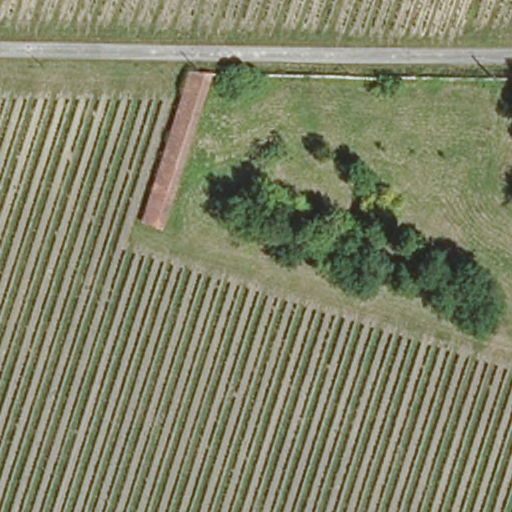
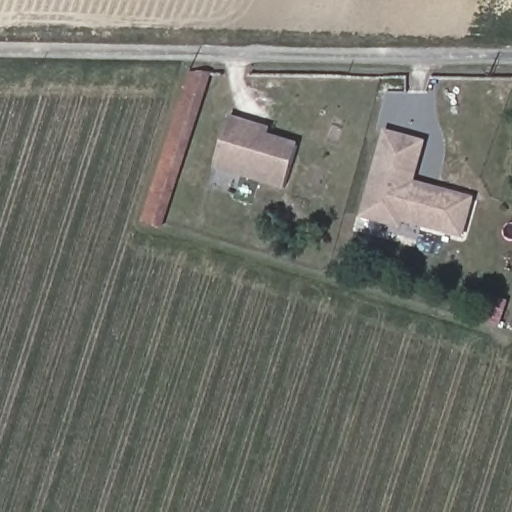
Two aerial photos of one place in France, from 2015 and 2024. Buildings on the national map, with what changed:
unchanged [(133,226),(196,74),(220,74),(153,232),(133,226)]
new [(285,191),(214,169),(230,117),(271,128),(269,135),(298,143),(285,191)]
new [(475,197),(463,239),(404,223),(402,231),(361,218),(384,131),(426,142),(416,182),(475,197)]

